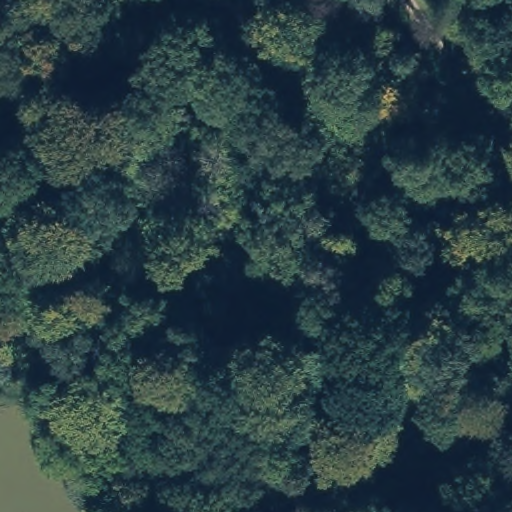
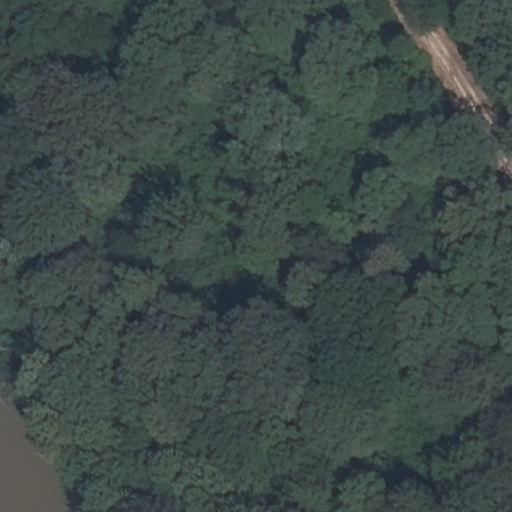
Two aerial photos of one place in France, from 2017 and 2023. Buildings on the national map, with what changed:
[]

